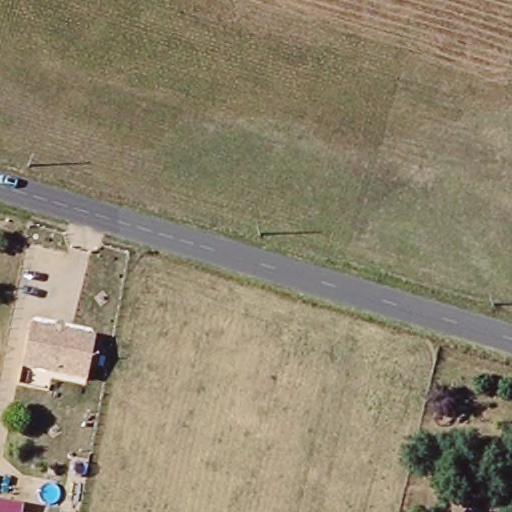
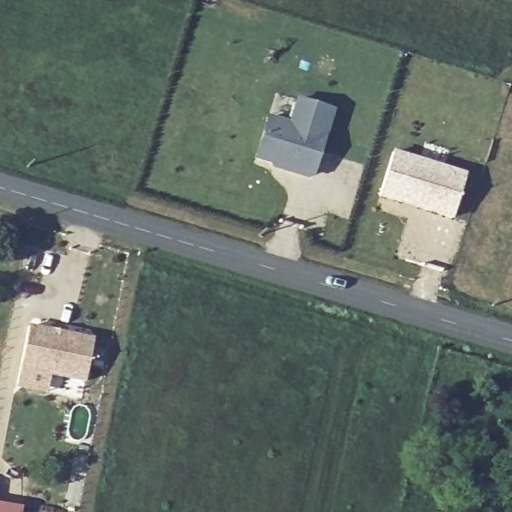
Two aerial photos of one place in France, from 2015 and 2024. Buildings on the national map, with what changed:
new [(333,109),(312,180),(273,169),(273,164),(256,159),(270,115),(290,121),(297,97),(333,109)]
new [(392,149),(467,172),(453,220),(376,195),(392,149)]
unchanged [(24,367),(31,326),(59,331),(51,372),(24,367)]
unchanged [(91,337),(84,379),(51,372),(59,331),(91,337)]

